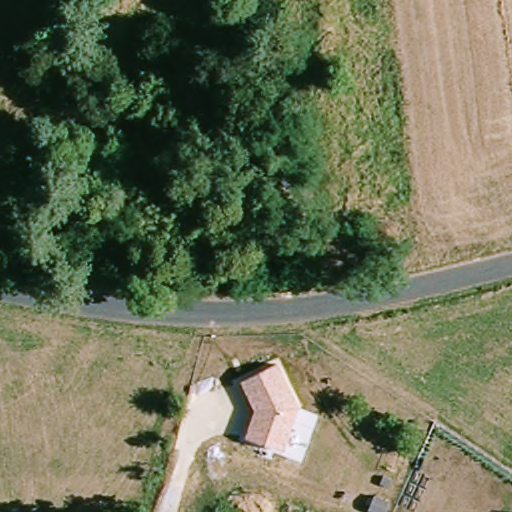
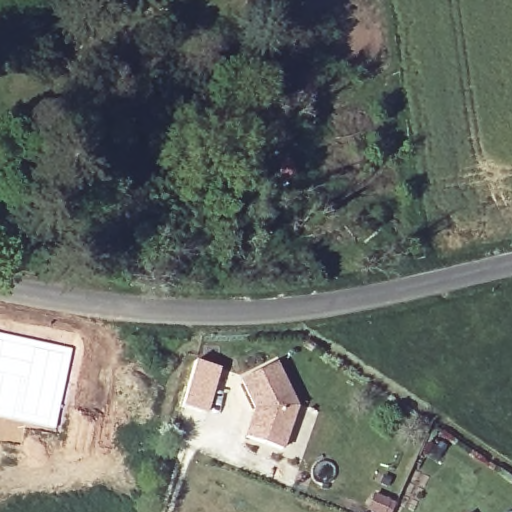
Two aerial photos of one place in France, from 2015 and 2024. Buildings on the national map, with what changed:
new [(58,431),(0,418),(0,331),(76,347),(58,431)]
unchanged [(300,406),(284,451),(244,438),(254,408),(240,380),(278,362),(300,406)]

